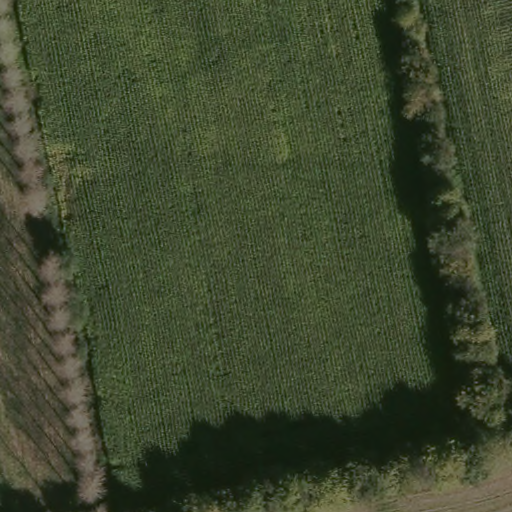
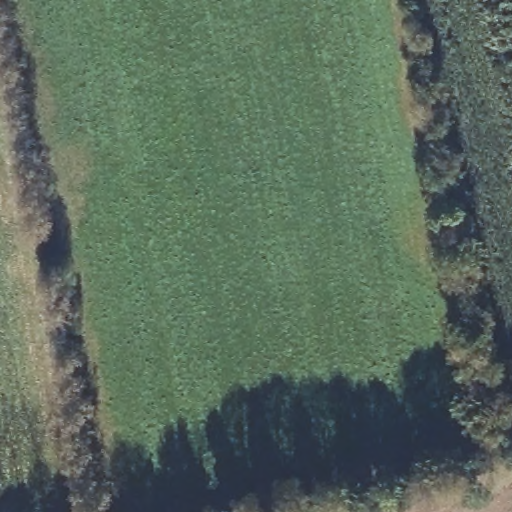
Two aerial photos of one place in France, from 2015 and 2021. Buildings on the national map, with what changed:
[]

